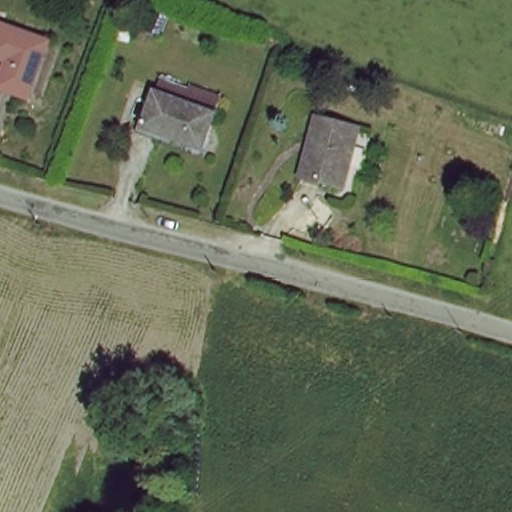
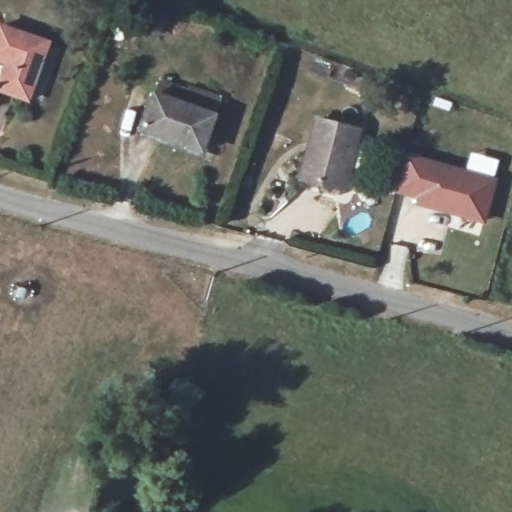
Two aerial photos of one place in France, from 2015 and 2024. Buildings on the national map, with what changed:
unchanged [(0,90),(0,82),(6,66),(0,64),(0,29),(47,46),(27,100),(0,90)]
unchanged [(155,99),(214,119),(203,154),(143,132),(155,99)]
unchanged [(319,122),(357,135),(339,192),(300,180),(319,122)]
new [(413,197),(395,192),(406,152),(498,177),(485,225),(412,205),(413,197)]

